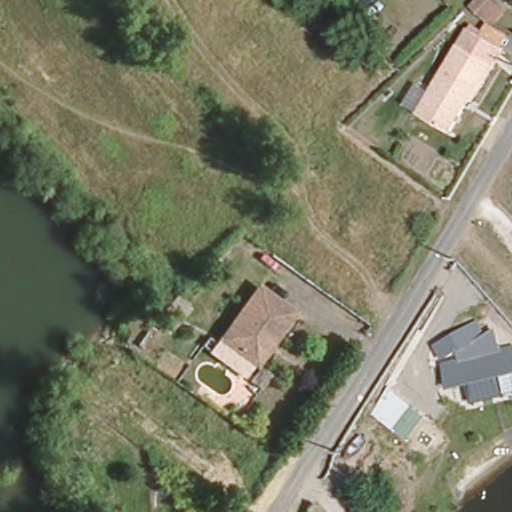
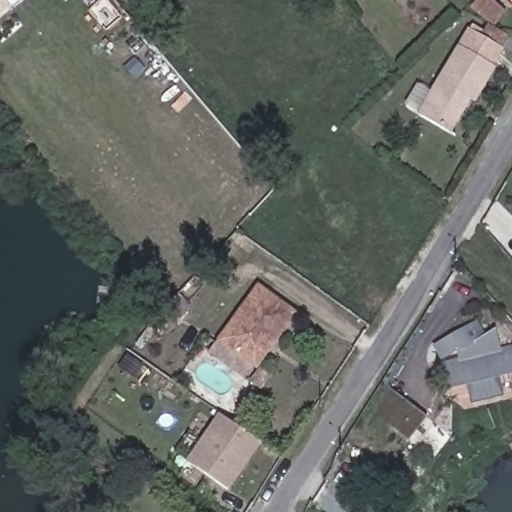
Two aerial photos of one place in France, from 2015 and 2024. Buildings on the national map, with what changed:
unchanged [(492,21),(476,4),(480,0),(489,0),(501,13),(492,21)]
new [(0,1),(5,7),(0,12),(0,1)]
unchanged [(493,69),(495,70),(475,105),(468,101),(448,135),(419,116),(470,30),(503,50),(493,69)]
unchanged [(253,360),(221,337),(256,285),(293,310),(275,337),(257,362),(253,360)]
unchanged [(440,389),(435,360),(447,351),(440,337),(474,322),(481,334),(492,330),(499,350),(512,346),(512,373),(440,389)]
new [(256,448),(220,494),(182,465),(218,418),(256,448)]

